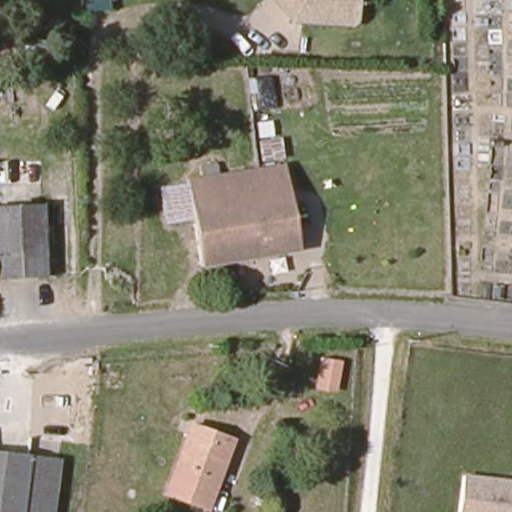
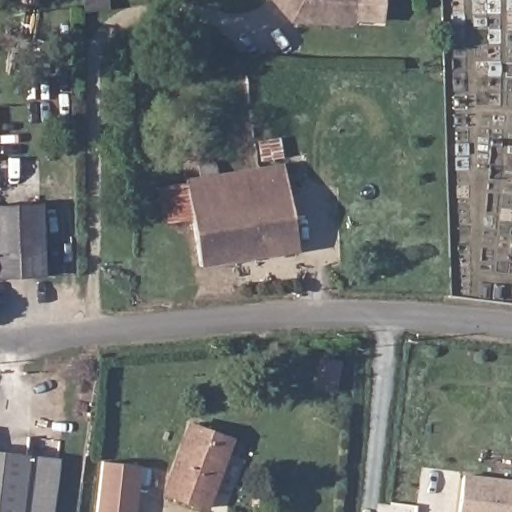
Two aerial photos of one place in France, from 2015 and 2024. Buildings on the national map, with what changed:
unchanged [(356,21),(350,26),(290,21),(287,16),(290,1),(289,0),(358,0),(356,21)]
unchanged [(195,154),(185,154),(185,144),(195,144),(195,154)]
unchanged [(199,268),(191,219),(163,223),(159,189),(186,185),(205,182),(202,167),(216,164),(220,179),(288,167),(301,250),(199,268)]
unchanged [(43,204),(42,195),(59,194),(59,204),(43,204)]
unchanged [(40,210),(40,281),(0,281),(0,210),(40,210)]
unchanged [(323,389),(304,388),(305,360),(325,361),(323,389)]
unchanged [(205,508),(166,493),(190,425),(231,441),(205,508)]
new [(96,512),(102,459),(136,464),(130,512),(96,512)]
unchanged [(49,468),(44,512),(0,512),(0,464),(49,468)]
unchanged [(512,512),(460,512),(465,475),(512,481),(512,512)]

